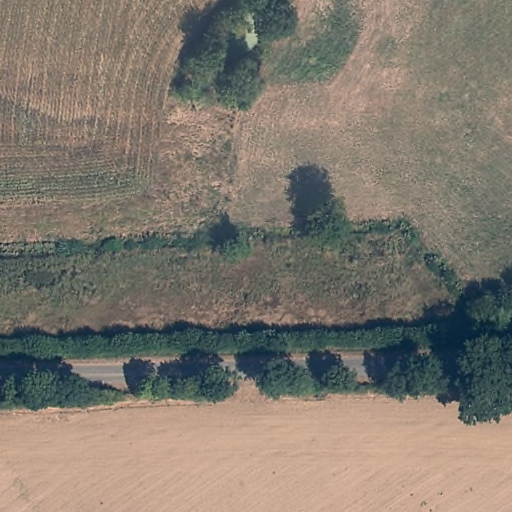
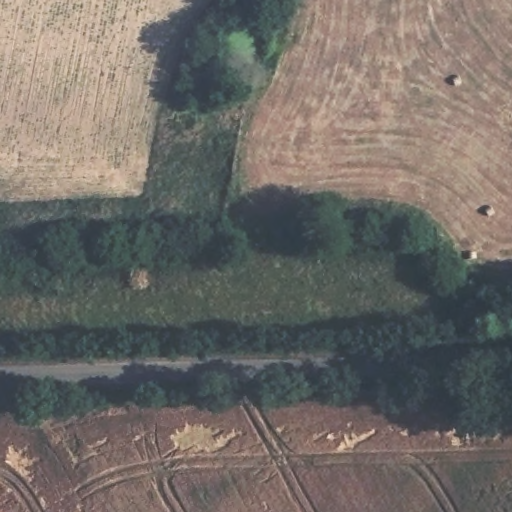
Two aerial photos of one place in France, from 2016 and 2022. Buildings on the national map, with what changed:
[]

